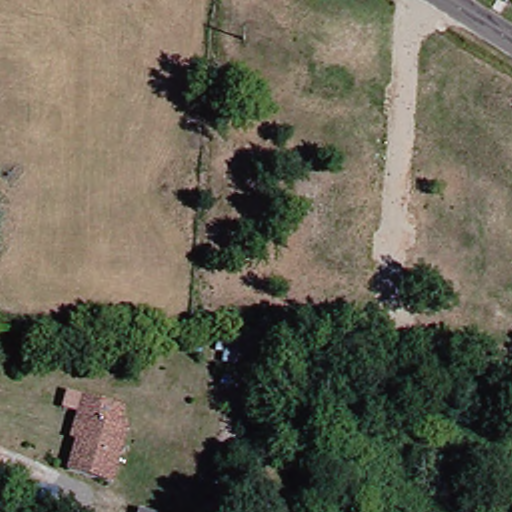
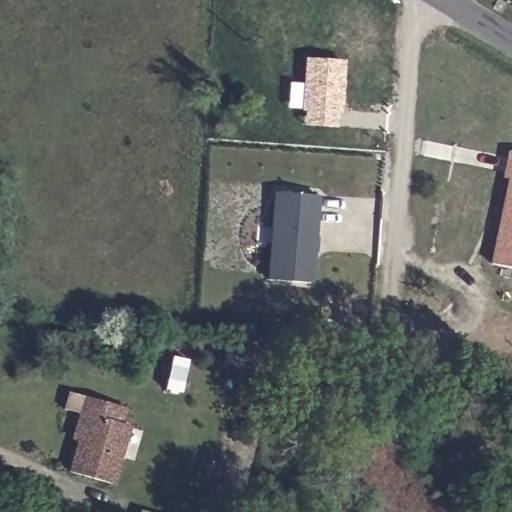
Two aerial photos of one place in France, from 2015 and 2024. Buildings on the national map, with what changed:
new [(299,109),(287,107),(288,82),(302,83),(305,58),(343,61),(342,74),(338,74),(335,128),(299,126),(299,109)]
new [(488,263),(509,160),(505,159),(507,150),(512,152),(512,268),(488,263)]
new [(312,282),(266,279),(273,194),(318,197),(312,282)]
unchanged [(54,393),(118,409),(101,482),(61,473),(68,444),(60,441),(67,414),(50,409),(54,393)]

